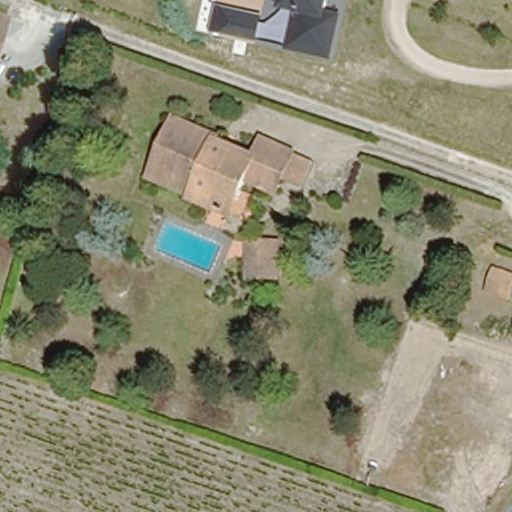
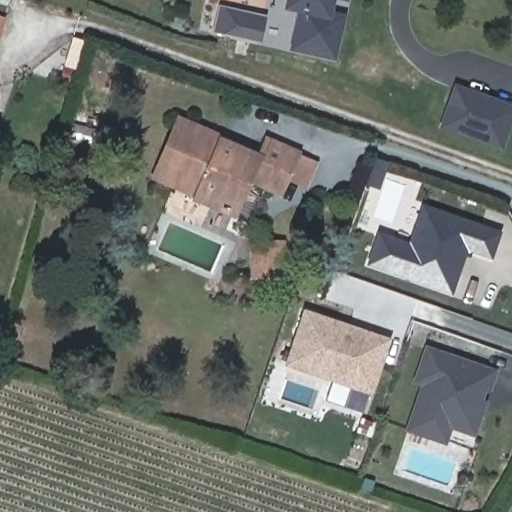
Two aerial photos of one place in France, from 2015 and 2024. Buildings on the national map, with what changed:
new [(260,42),(214,32),(220,6),(266,16),(265,24),(272,25),(286,12),(289,11),(283,10),(286,0),(300,0),(298,6),(312,10),(303,45),(260,39),(260,42)]
unchanged [(352,19),(342,57),(303,47),(312,10),(298,6),(300,0),(341,0),(337,15),(352,19)]
new [(438,127),(454,84),(512,104),(512,125),(504,149),(438,127)]
unchanged [(175,120),(219,141),(216,146),(254,164),(263,145),(291,159),(273,197),(245,185),(235,206),(214,196),(211,202),(149,174),(175,120)]
new [(373,232),(405,243),(417,205),(496,232),(486,258),(462,250),(447,294),(362,265),(373,232)]
unchanged [(254,237),(278,237),(277,277),(253,277),(254,237)]
new [(294,353),(307,312),(347,326),(370,333),(390,340),(366,407),(347,401),(353,385),(318,373),(290,363),(294,353)]
new [(487,392),(484,401),(487,402),(475,437),(452,429),(447,446),(405,432),(420,386),(412,383),(425,345),(497,371),(490,392),(487,392)]
new [(332,377),(353,385),(347,401),(366,407),(365,413),(324,400),(332,377)]

